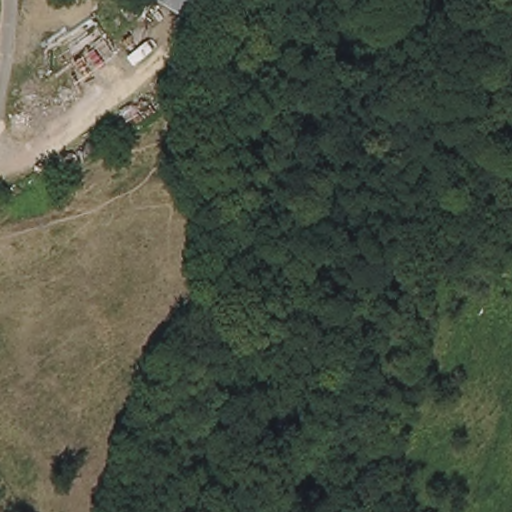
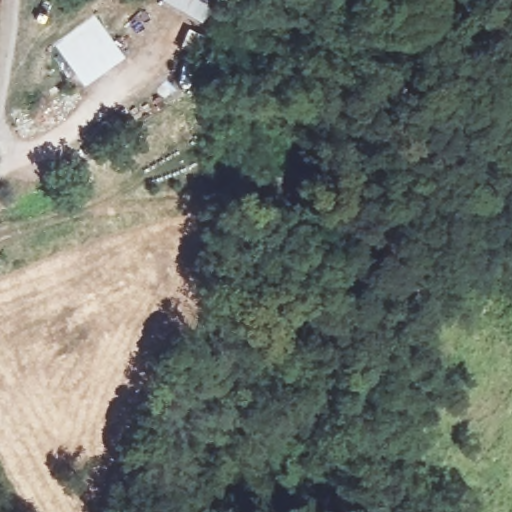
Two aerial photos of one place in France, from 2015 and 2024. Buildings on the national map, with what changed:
unchanged [(168,0),(219,0),(208,21),(169,0),(168,0)]
new [(94,14),(124,56),(84,85),(54,43),(94,14)]

